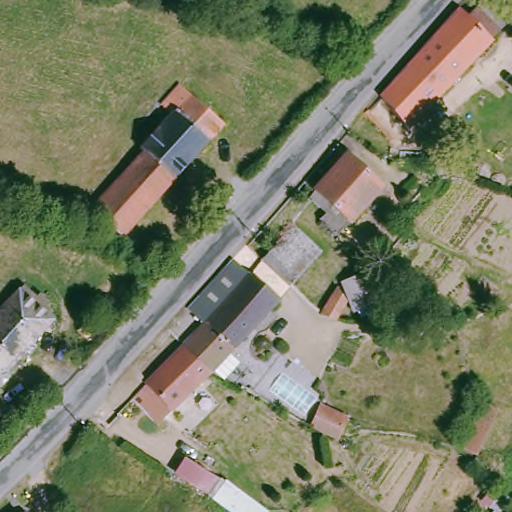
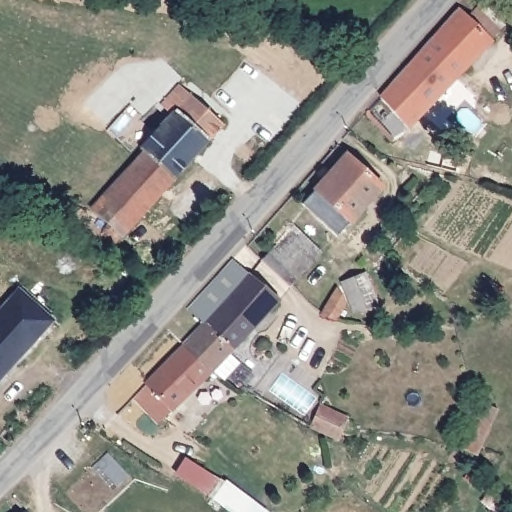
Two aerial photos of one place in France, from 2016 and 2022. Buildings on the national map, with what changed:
unchanged [(468,10),(472,13),(480,5),(483,2),(506,23),(413,130),(413,129),(411,127),(410,127),(395,144),(395,143),(362,113),(361,113),(371,102),(455,8),(460,2),(468,10)]
unchanged [(228,122),(110,247),(96,235),(105,226),(85,207),(138,152),(134,147),(170,111),(161,102),(182,81),(228,122)]
unchanged [(321,213),(331,204),(315,188),(348,152),(380,184),(337,231),(321,213)]
unchanged [(262,254),(289,222),(325,252),(300,283),(262,254)]
unchanged [(271,314),(240,345),(229,357),(240,368),(227,382),(224,384),(223,386),(212,375),(180,345),(181,344),(187,338),(197,328),(184,317),(187,313),(230,267),(231,268),(283,297),(287,316),(271,314)]
unchanged [(332,293),(348,304),(340,285),(365,273),(380,304),(355,314),(349,305),(341,322),(317,314),(332,293)]
unchanged [(0,380),(0,310),(21,287),(55,319),(0,380)]
unchanged [(180,345),(212,375),(157,429),(129,400),(180,345)]
unchanged [(317,400),(355,417),(347,434),(335,430),(330,438),(305,424),(317,400)]
unchanged [(485,402),(500,409),(478,455),(463,448),(485,402)]
unchanged [(215,470),(205,484),(183,472),(193,457),(215,470)]

